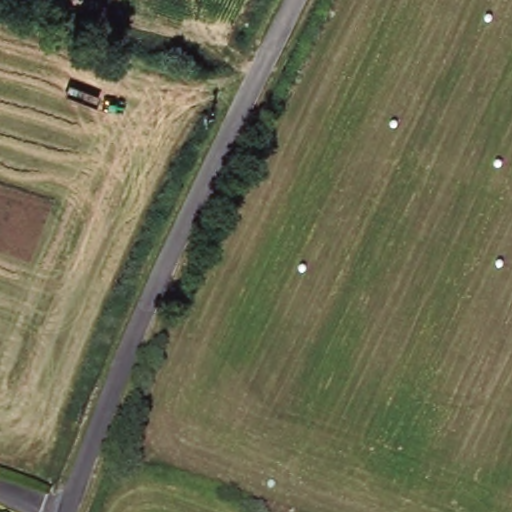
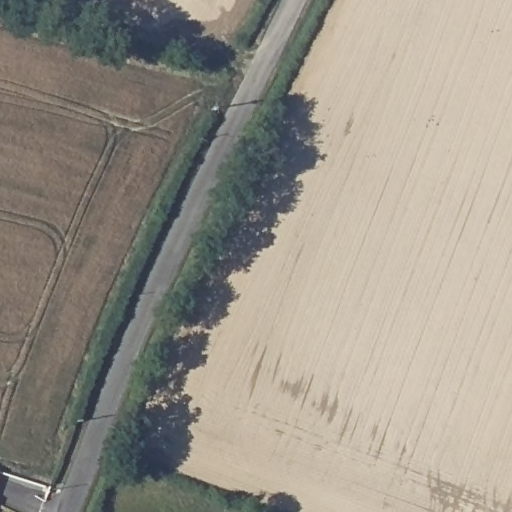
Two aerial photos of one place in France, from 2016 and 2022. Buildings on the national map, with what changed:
unchanged [(196,142),(191,152),(180,148),(186,138),(196,142)]

